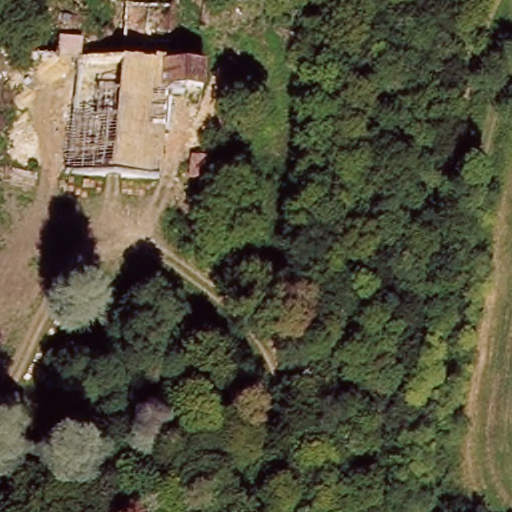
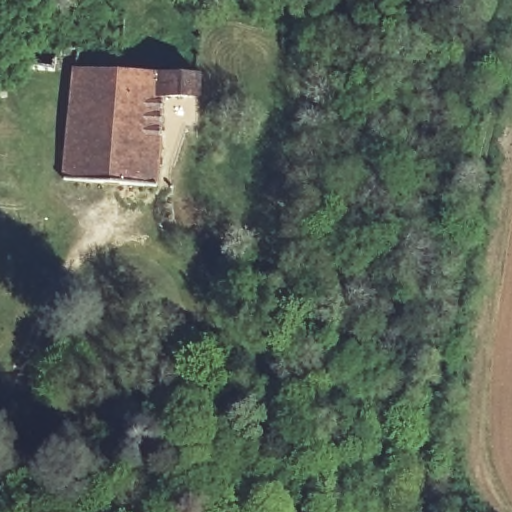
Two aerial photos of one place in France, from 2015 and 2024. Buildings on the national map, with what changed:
unchanged [(7,46),(45,49),(41,67),(38,74),(3,72),(3,65),(7,46)]
unchanged [(166,73),(201,76),(200,95),(166,93),(158,184),(64,179),(70,128),(77,66),(166,73)]

